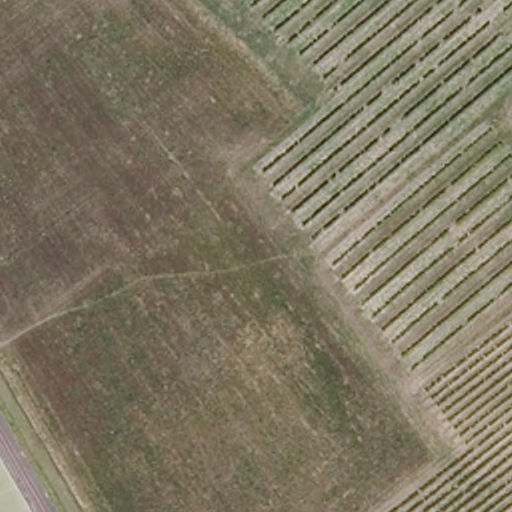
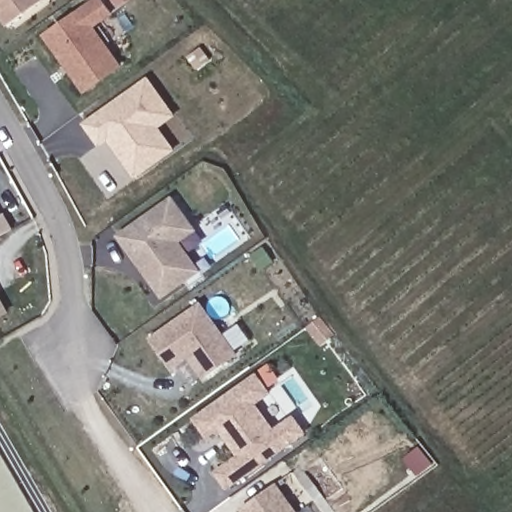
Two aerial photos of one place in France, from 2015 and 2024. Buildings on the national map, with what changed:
new [(0,15),(0,0),(42,0),(8,26),(0,15)]
new [(125,65),(87,94),(45,34),(92,0),(106,0),(116,14),(97,26),(125,65)]
new [(161,126),(177,149),(136,179),(109,140),(101,147),(84,123),(149,76),(177,114),(161,126)]
new [(181,241),(202,270),(163,299),(117,235),(174,194),(197,229),(181,241)]
new [(1,217),(7,213),(15,227),(0,235),(0,216),(1,217)]
new [(10,312),(0,317),(0,294),(10,312)]
new [(203,379),(189,358),(172,370),(149,337),(202,302),(239,354),(203,379)]
new [(215,428),(203,436),(191,419),(257,370),(270,389),(255,399),(275,427),(294,413),(305,429),(286,443),(223,488),(212,472),(235,456),(227,445),(222,438),(215,428)]
new [(273,482),(295,512),(244,512),(240,506),(273,482)]

